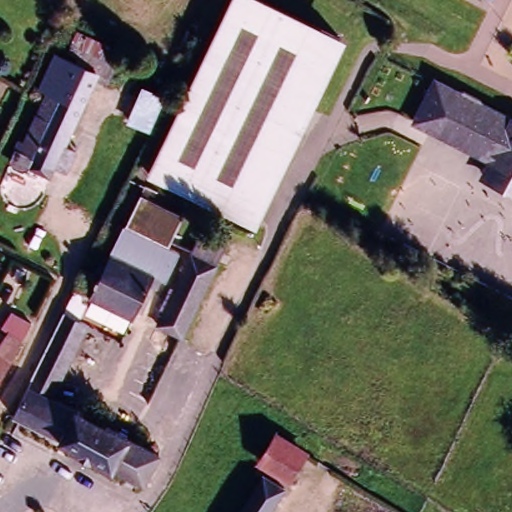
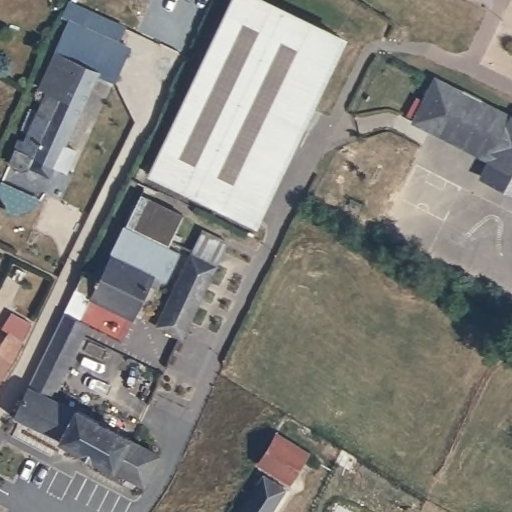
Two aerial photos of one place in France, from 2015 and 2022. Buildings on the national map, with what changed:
unchanged [(218,20),(228,0),(267,0),(334,33),(311,81),(244,218),(146,170),(213,31),(218,20)]
unchanged [(498,0),(505,0),(504,3),(498,0)]
unchanged [(123,50),(112,73),(62,48),(73,26),(123,50)]
unchanged [(96,77),(70,126),(83,132),(70,155),(60,150),(55,159),(33,148),(39,140),(24,131),(36,109),(31,106),(57,56),(96,77)]
unchanged [(408,119),(425,85),(429,77),(434,79),(456,89),(457,87),(475,96),(474,98),(507,114),(511,104),(512,104),(512,144),(502,165),(493,161),(408,119)]
unchanged [(484,178),(493,161),(502,165),(512,144),(512,191),(484,178)]
unchanged [(185,215),(168,247),(124,225),(140,193),(185,215)]
unchanged [(226,242),(183,340),(157,327),(201,230),(226,242)]
unchanged [(108,271),(113,258),(153,279),(133,323),(92,300),(81,323),(66,315),(93,262),(108,271)]
unchanged [(89,329),(51,398),(30,387),(50,349),(66,315),(81,323),(89,329)]
unchanged [(23,341),(0,376),(0,346),(10,332),(23,341)]
unchanged [(30,387),(51,398),(161,461),(147,489),(17,415),(30,387)]
unchanged [(304,465),(293,486),(259,468),(271,447),(304,465)]
unchanged [(266,512),(241,512),(261,471),(281,481),(266,512)]

